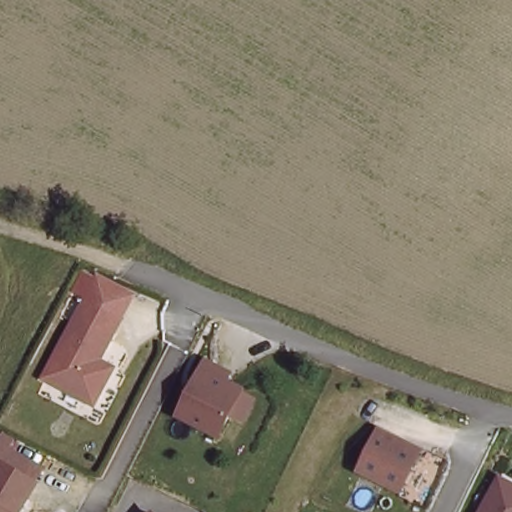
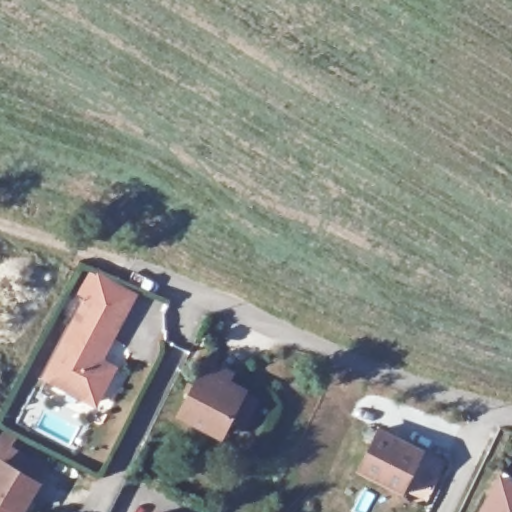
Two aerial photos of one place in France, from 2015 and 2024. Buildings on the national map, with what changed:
unchanged [(120,314),(99,356),(111,363),(88,400),(39,373),(82,295),(120,314)]
unchanged [(246,386),(223,428),(184,407),(208,365),(246,386)]
unchanged [(376,424),(391,432),(389,436),(414,449),(394,486),(354,463),(376,424)]
unchanged [(19,507),(17,512),(0,512),(0,457),(36,478),(19,507)]
unchanged [(512,487),(512,512),(485,512),(499,481),(512,487)]
unchanged [(148,512),(153,506),(161,512),(148,512)]

